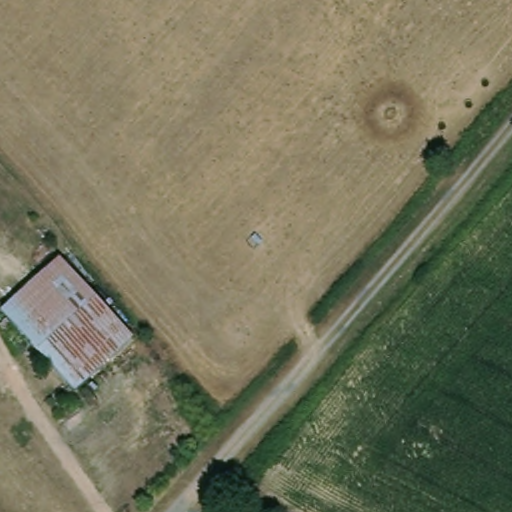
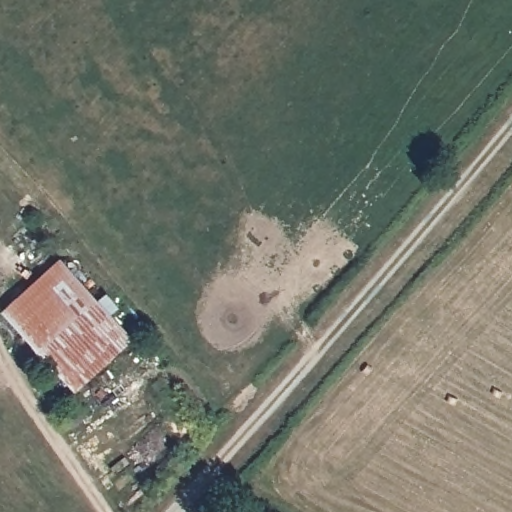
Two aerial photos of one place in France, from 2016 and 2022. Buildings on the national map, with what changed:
unchanged [(77,391),(8,314),(67,261),(136,337),(77,391)]

